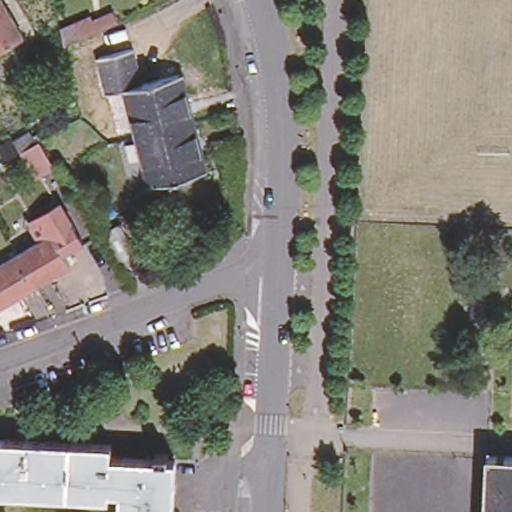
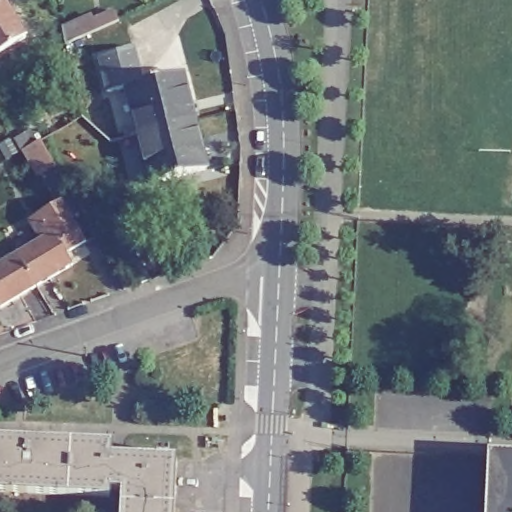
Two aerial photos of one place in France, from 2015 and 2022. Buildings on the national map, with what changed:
unchanged [(0,46),(0,0),(4,0),(23,35),(0,46)]
unchanged [(110,90),(99,49),(131,40),(141,77),(124,80),(126,87),(110,90)]
unchanged [(141,128),(138,125),(136,125),(126,87),(124,80),(141,77),(183,68),(194,116),(141,128)]
unchanged [(149,177),(136,125),(138,125),(141,128),(194,116),(206,163),(149,177)]
unchanged [(13,137),(28,128),(36,140),(30,144),(19,150),(13,137)]
unchanged [(56,194),(39,165),(41,162),(38,158),(49,151),(70,186),(58,192),(56,194)]
unchanged [(35,282),(17,250),(51,229),(71,219),(81,239),(63,248),(70,262),(35,282)]
unchanged [(35,282),(0,303),(0,260),(17,250),(35,282)]
unchanged [(66,493),(0,489),(0,436),(68,439),(66,493)]
unchanged [(108,441),(108,453),(152,456),(153,448),(165,449),(166,456),(171,457),(169,505),(116,502),(116,490),(105,489),(104,496),(66,493),(68,439),(108,441)]
unchanged [(482,512),(484,452),(512,453),(512,512),(482,512)]
unchanged [(116,512),(116,502),(169,505),(169,512),(116,512)]

